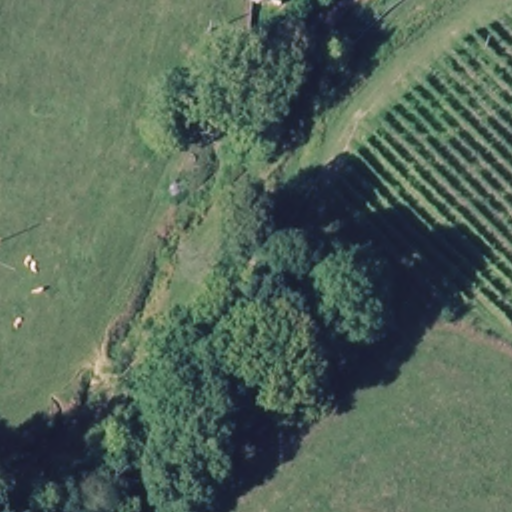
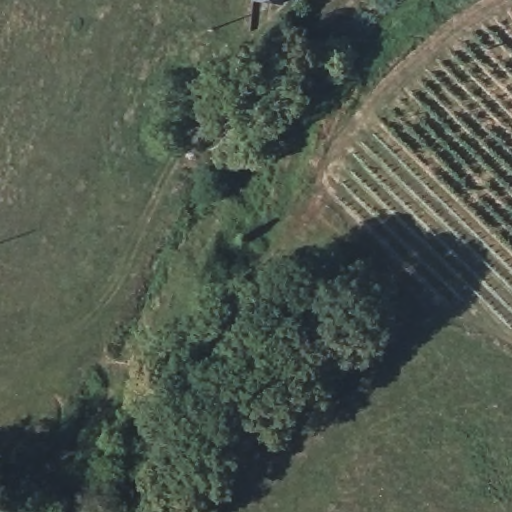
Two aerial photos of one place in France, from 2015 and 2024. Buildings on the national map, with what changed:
unchanged [(284,0),(283,6),(249,2),(249,0),(284,0)]

